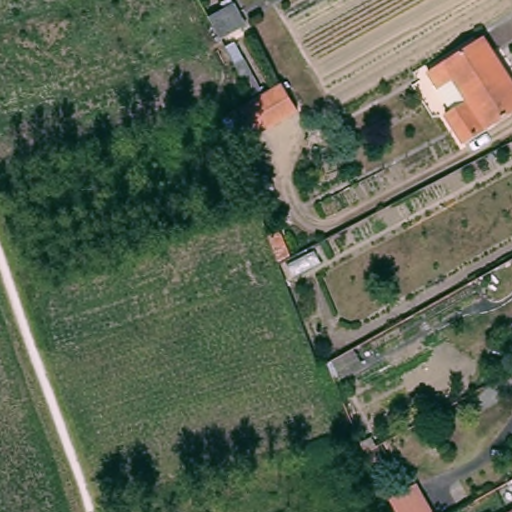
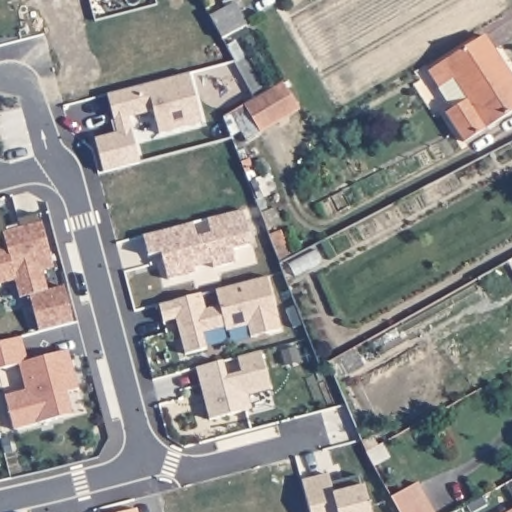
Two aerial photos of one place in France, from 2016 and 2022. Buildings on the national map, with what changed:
unchanged [(209,16),(233,4),(245,25),(222,39),(209,16)]
unchanged [(512,73),(512,113),(482,132),(468,141),(450,114),(459,109),(444,86),(433,71),(488,36),(491,40),(498,51),(512,73)]
unchanged [(244,105),(255,99),(243,77),(236,64),(244,59),(263,94),(282,82),(298,110),(260,134),(249,113),(238,119),(233,111),(243,105),(244,105)]
new [(116,133),(106,95),(188,73),(201,123),(159,135),(152,111),(127,119),(139,164),(102,173),(94,139),(116,133)]
new [(191,222),(195,238),(210,234),(206,219),(242,209),(252,244),(233,249),(237,261),(214,267),(212,262),(194,267),(196,272),(168,280),(164,263),(168,262),(166,251),(148,256),(142,236),(191,222)]
unchanged [(272,210),(277,224),(265,228),(259,215),(272,210)]
new [(5,234),(19,230),(17,221),(37,215),(52,268),(41,271),(46,292),(62,287),(72,325),(38,333),(28,296),(19,299),(14,281),(0,285),(0,214),(5,234)]
unchanged [(268,236),(281,231),(291,257),(279,263),(268,236)]
new [(162,322),(158,305),(201,294),(205,310),(219,307),(215,290),(267,276),(281,330),(251,337),(247,325),(226,331),(225,327),(202,333),(206,349),(185,355),(180,338),(175,319),(162,322)]
new [(57,419),(13,431),(4,397),(25,391),(18,365),(0,370),(0,343),(20,338),(27,362),(67,351),(73,375),(69,376),(71,383),(75,382),(77,390),(66,393),(72,415),(57,419)]
unchanged [(327,362),(353,348),(363,365),(335,381),(327,362)]
new [(222,361),(227,377),(242,373),(237,357),(260,351),(270,390),(247,395),(251,409),(209,420),(205,404),(209,403),(204,385),(200,386),(196,368),(222,361)]
new [(343,481),(361,476),(369,512),(310,512),(302,481),(327,475),(330,484),(343,481)]
unchanged [(417,483),(433,512),(398,512),(391,498),(417,483)]
new [(128,512),(136,510),(137,512),(128,512)]

